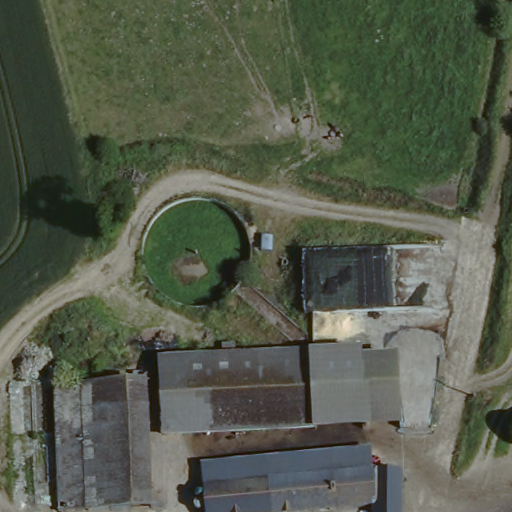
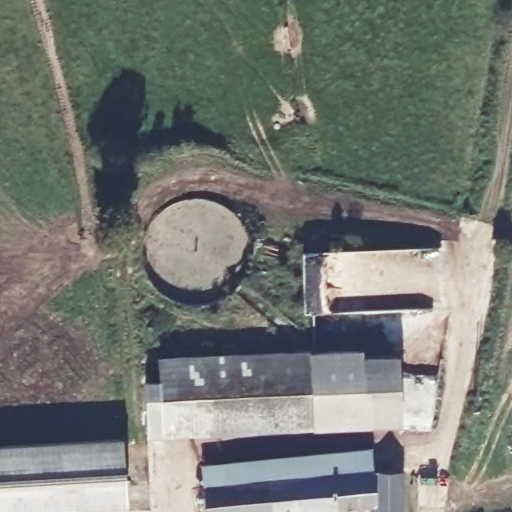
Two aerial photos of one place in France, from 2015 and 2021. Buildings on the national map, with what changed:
unchanged [(314,353),(366,350),(367,360),(401,357),(405,425),(312,431),(166,441),(162,363),(314,353)]
demolished [(70,510),(69,475),(59,475),(57,376),(69,376),(69,389),(90,390),(92,510),(70,510)]
demolished [(34,379),(36,507),(26,508),(20,379),(34,379)]
new [(43,512),(0,512),(0,447),(123,438),(126,506),(43,512)]
unchanged [(204,463),(375,450),(376,475),(205,487),(204,463)]
unchanged [(376,475),(401,472),(401,512),(375,512),(206,512),(205,487),(376,475)]

